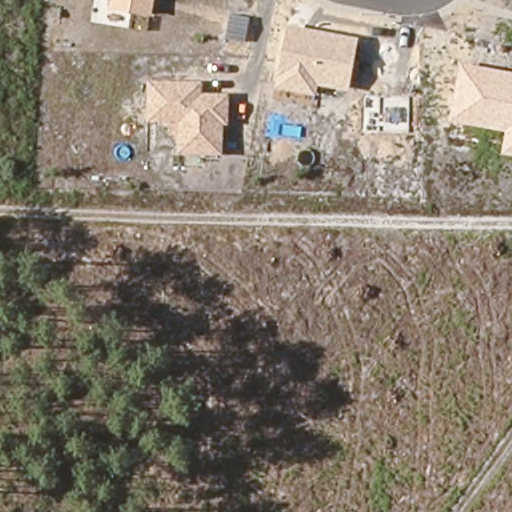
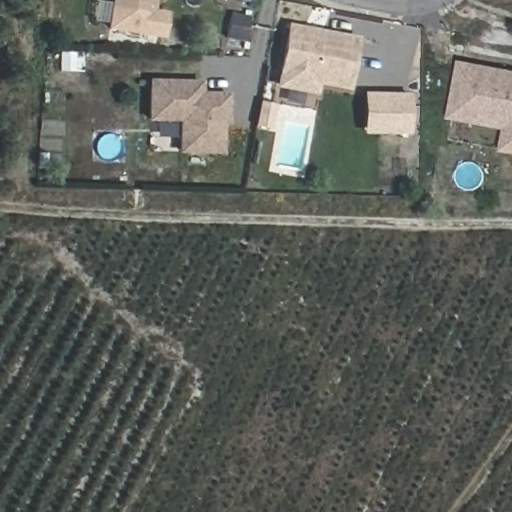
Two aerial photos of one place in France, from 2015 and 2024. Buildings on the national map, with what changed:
unchanged [(110,9),(111,0),(155,0),(152,15),(110,9)]
unchanged [(318,85),(316,95),(275,88),(286,25),(358,37),(349,90),(318,85)]
unchanged [(501,154),(505,130),(450,121),(460,63),(512,72),(512,155),(501,154)]
unchanged [(229,125),(224,125),(223,154),(179,154),(179,121),(147,121),(148,80),(202,80),(202,93),(230,94),(229,125)]
new [(362,134),(362,92),(411,93),(410,135),(362,134)]

